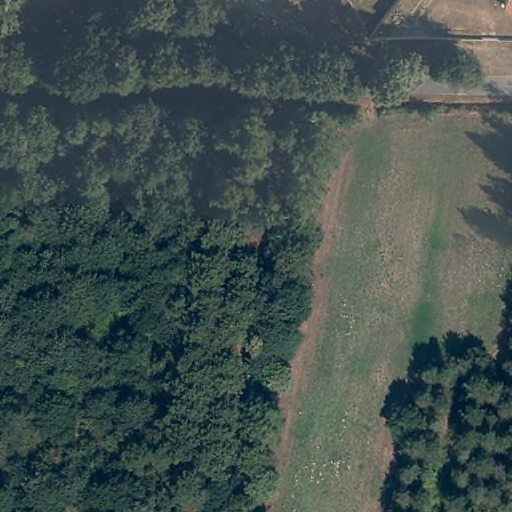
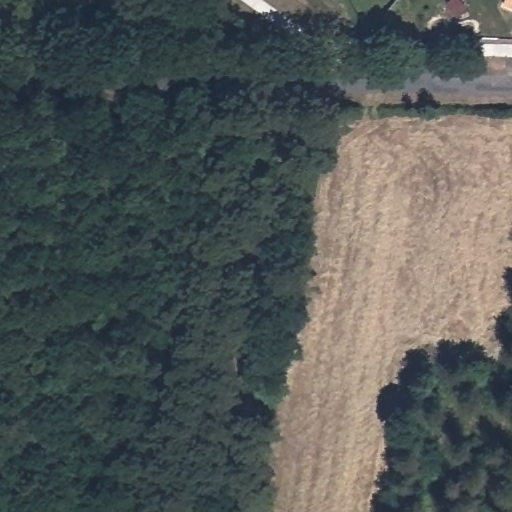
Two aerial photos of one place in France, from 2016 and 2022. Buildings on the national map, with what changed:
unchanged [(511,0),(512,0),(512,8),(508,6),(511,0)]
unchanged [(248,378),(269,382),(264,411),(243,408),(248,378)]

